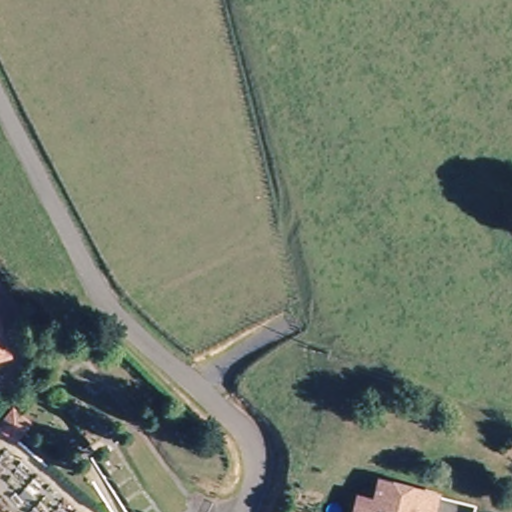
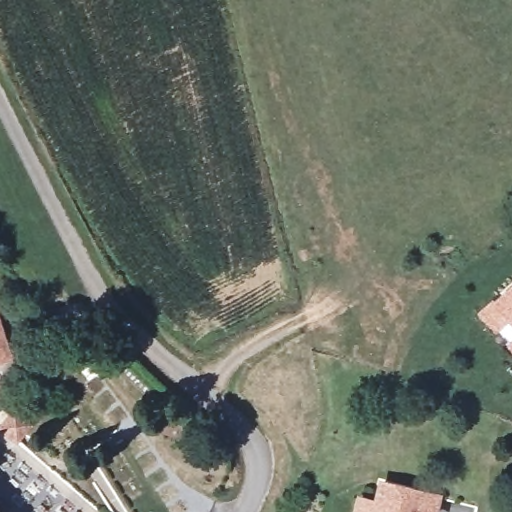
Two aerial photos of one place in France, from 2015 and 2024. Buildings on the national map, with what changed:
new [(497,298),(512,283),(512,326),(507,320),(493,335),(475,314),(495,297),(497,298)]
unchanged [(0,359),(0,328),(5,357),(0,359)]
new [(507,345),(512,341),(512,351),(507,345)]
unchanged [(441,512),(363,512),(364,505),(378,509),(385,479),(445,493),(441,512)]
unchanged [(0,512),(0,505),(5,512),(0,512)]

